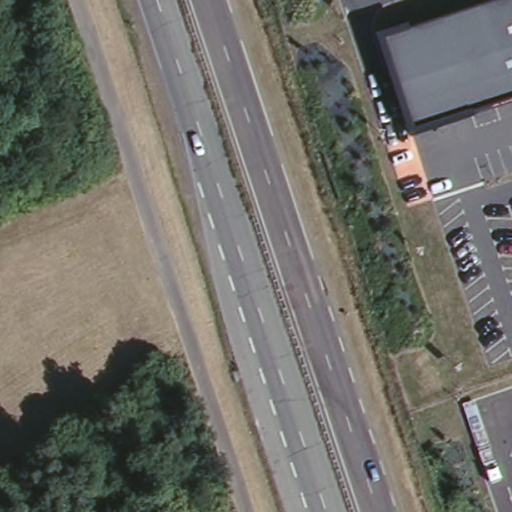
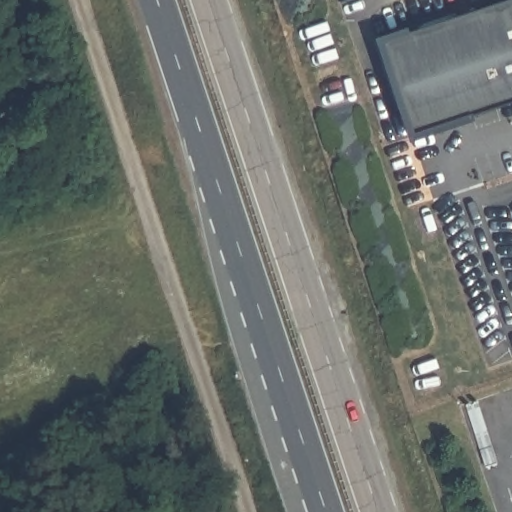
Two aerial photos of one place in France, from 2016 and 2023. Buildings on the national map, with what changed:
unchanged [(470,115),(471,120),(409,141),(374,38),(408,27),(409,32),(504,0),(512,0),(512,101),(470,115)]

